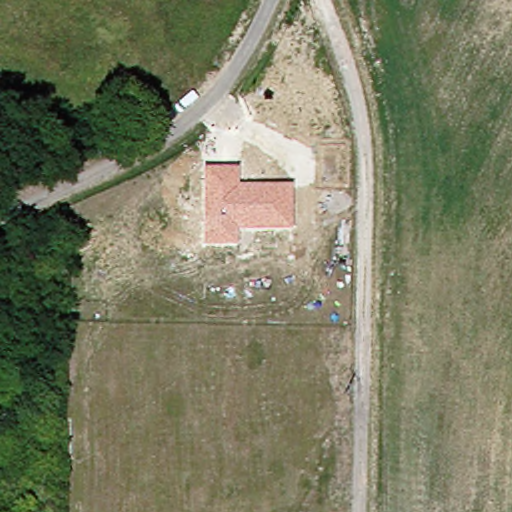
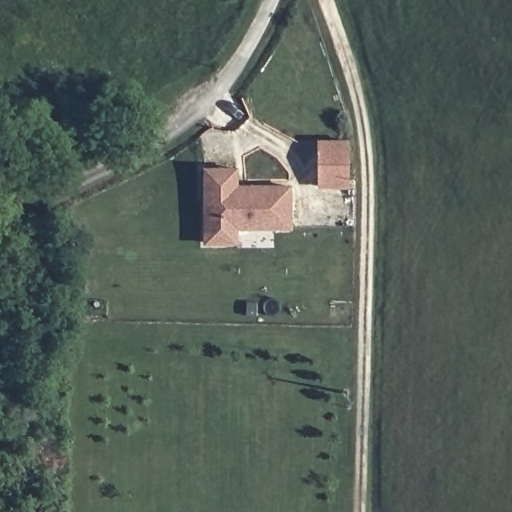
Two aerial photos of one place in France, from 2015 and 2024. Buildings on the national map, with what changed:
new [(347,138),(347,188),(316,188),(316,138),(347,138)]
unchanged [(237,167),(237,186),(291,185),(292,230),(238,232),(238,246),(203,247),(203,168),(237,167)]

